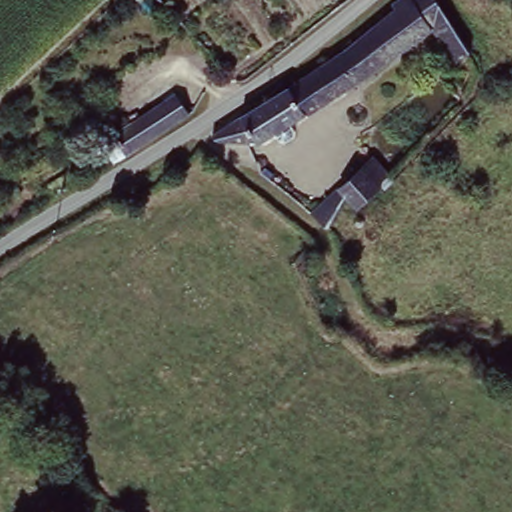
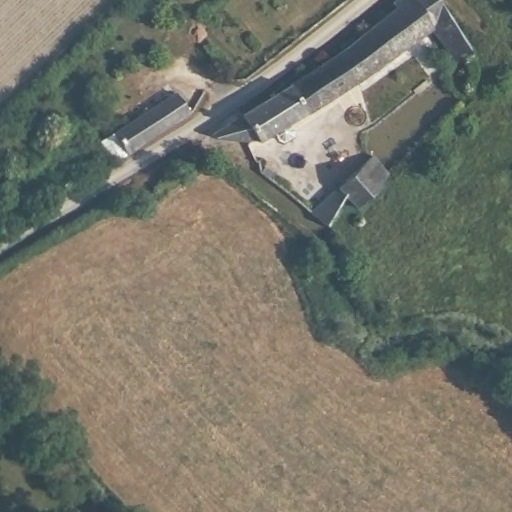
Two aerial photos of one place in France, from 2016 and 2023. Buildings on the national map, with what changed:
unchanged [(277,93),(358,33),(389,13),(398,6),(403,0),(434,0),(469,45),(456,56),(427,22),(413,34),(404,43),(387,53),(373,62),(355,73),(332,90),(299,113),(266,139),(256,141),(242,141),(217,144),(212,142),(277,93)]
unchanged [(98,141),(180,91),(199,117),(169,137),(151,148),(117,169),(98,141)]
unchanged [(311,219),(334,194),(372,157),(386,171),(374,180),(377,187),(352,212),(344,207),(340,211),(331,221),(323,231),(311,219)]

